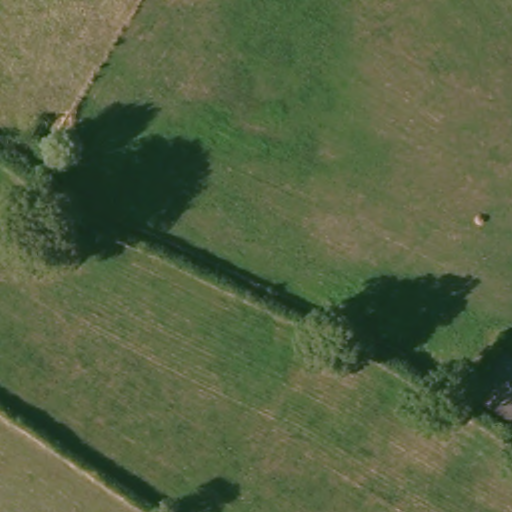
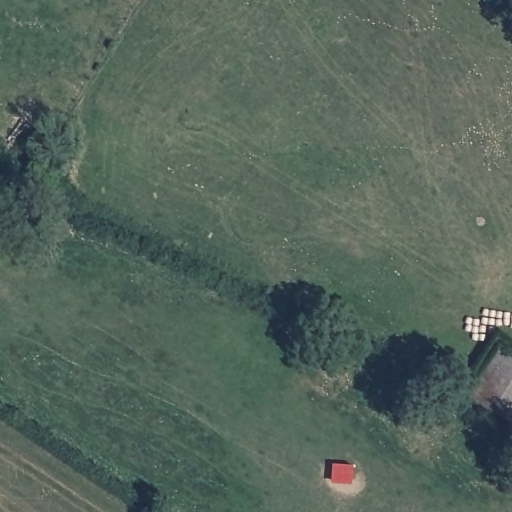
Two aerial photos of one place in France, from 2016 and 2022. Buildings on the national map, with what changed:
unchanged [(468,396),(497,346),(512,356),(512,422),(468,396)]

